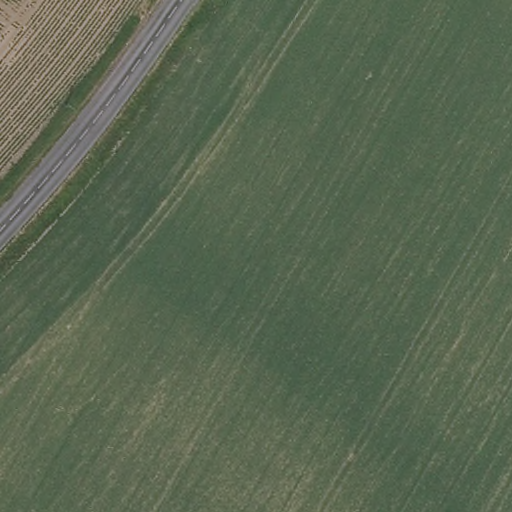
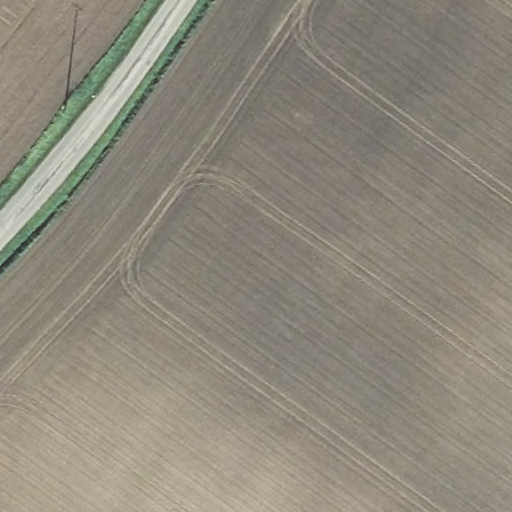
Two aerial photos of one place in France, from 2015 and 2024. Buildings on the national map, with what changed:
[]

